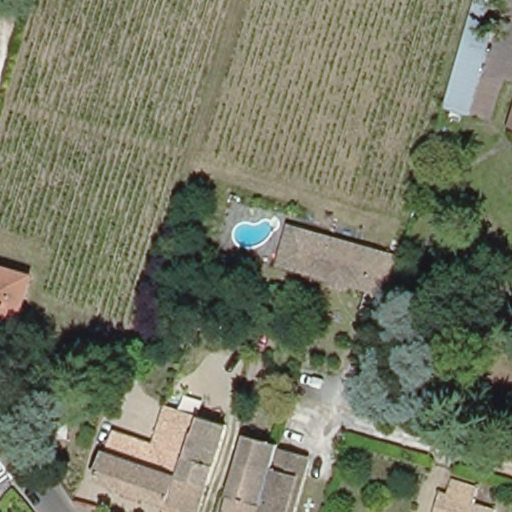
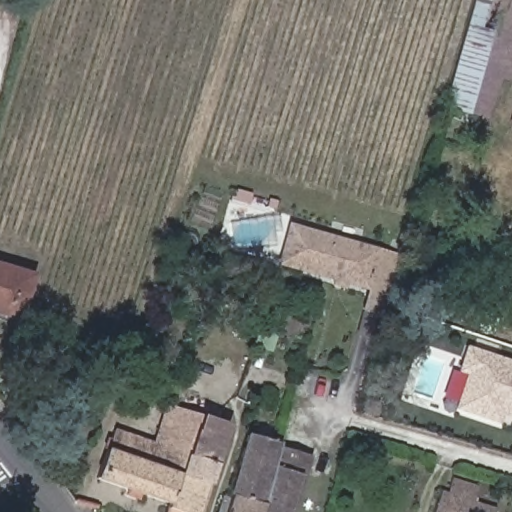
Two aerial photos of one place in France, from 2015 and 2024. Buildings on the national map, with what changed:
unchanged [(467,112),(444,108),(476,7),(497,14),(467,112)]
unchanged [(354,308),(361,287),(280,263),(291,225),(401,257),(392,289),(383,317),(354,308)]
unchanged [(17,318),(0,313),(0,266),(30,274),(17,318)]
new [(503,422),(461,408),(473,373),(464,370),(472,348),(512,361),(512,415),(506,412),(503,422)]
unchanged [(102,482),(117,434),(158,447),(171,408),(174,409),(204,418),(208,418),(230,426),(210,486),(202,512),(173,512),(175,507),(102,482)]
unchanged [(264,508),(233,499),(252,437),(282,446),(264,508)]
unchanged [(282,446),(306,454),(288,512),(263,512),(264,508),(282,446)]
unchanged [(493,512),(442,512),(450,490),(495,505),(493,512)]
unchanged [(229,512),(232,501),(233,499),(264,508),(263,512),(229,512)]

